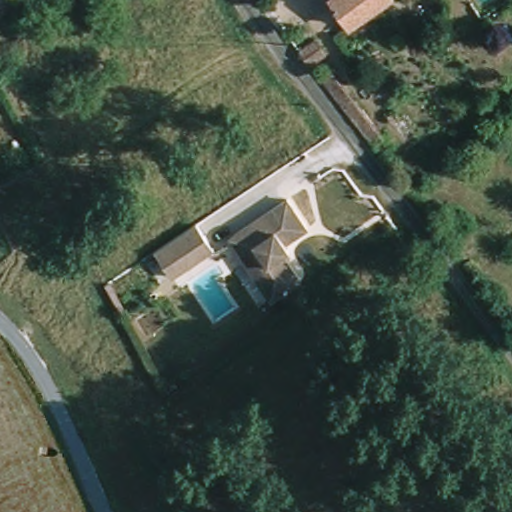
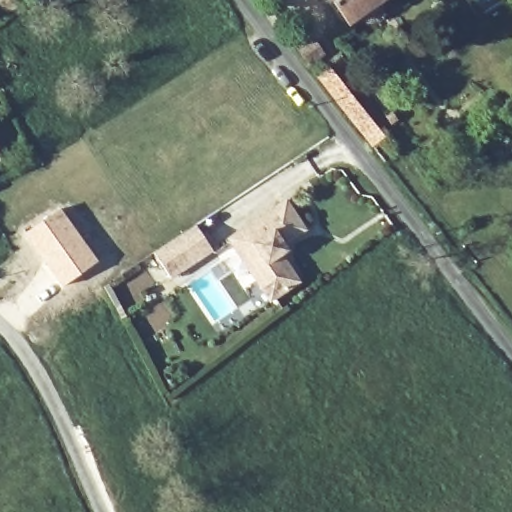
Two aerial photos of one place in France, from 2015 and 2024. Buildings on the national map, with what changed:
unchanged [(0,13),(0,0),(23,0),(0,13)]
unchanged [(346,23),(328,0),(378,0),(346,23)]
unchanged [(327,52),(313,62),(303,49),(317,38),(327,52)]
unchanged [(376,145),(323,75),(332,68),(385,137),(376,145)]
unchanged [(231,237),(290,199),(308,228),(284,245),(282,251),(302,280),(273,300),(231,237)]
new [(61,207),(99,261),(62,287),(23,234),(61,207)]
unchanged [(198,223),(215,249),(172,277),(156,251),(198,223)]

